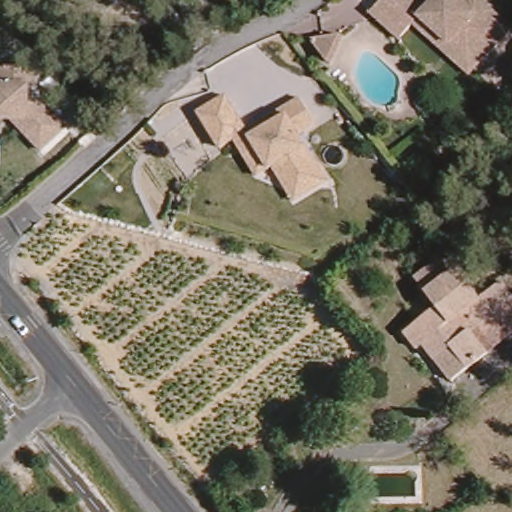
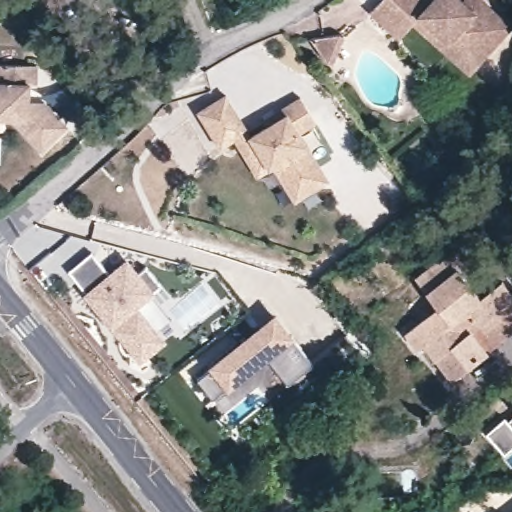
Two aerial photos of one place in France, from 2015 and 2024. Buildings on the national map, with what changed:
unchanged [(410,22),(395,39),(365,10),(375,0),(459,0),(477,0),(479,0),(507,26),(475,60),(464,73),(410,22)]
unchanged [(38,87),(32,87),(31,96),(31,105),(47,105),(68,127),(43,151),(14,120),(0,120),(0,68),(39,70),(38,87)]
unchanged [(249,130),(300,101),(317,131),(298,142),(328,188),(294,206),(270,171),(255,180),(230,145),(219,152),(196,119),(225,97),(249,130)]
new [(110,273),(128,260),(141,275),(147,270),(162,287),(156,293),(139,308),(168,342),(142,363),(85,293),(89,290),(72,272),(93,255),(110,273)]
unchanged [(439,364),(428,351),(423,355),(412,339),(432,322),(429,316),(440,306),(422,283),(450,261),(485,304),(507,287),(512,294),(512,307),(475,336),(492,357),(471,373),(455,385),(439,364)]
unchanged [(492,357),(475,336),(512,307),(512,341),(492,357)]
new [(275,313),(294,337),(316,363),(290,386),(268,364),(232,390),(229,386),(213,401),(198,381),(211,365),(275,313)]
new [(505,419),(509,422),(512,419),(512,449),(505,455),(487,435),(505,419)]

